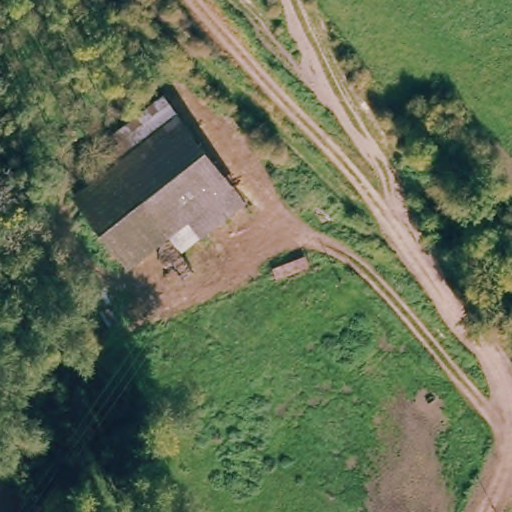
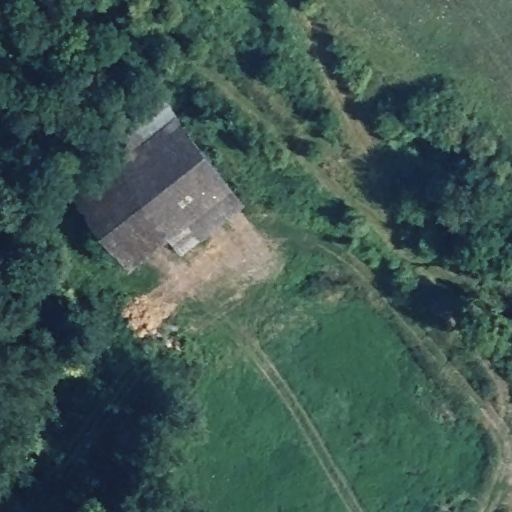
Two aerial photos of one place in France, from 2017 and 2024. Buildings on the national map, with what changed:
unchanged [(75,195),(178,115),(233,185),(131,268),(75,195)]

